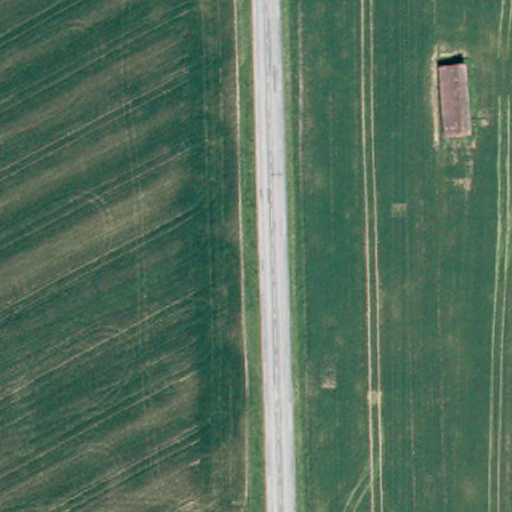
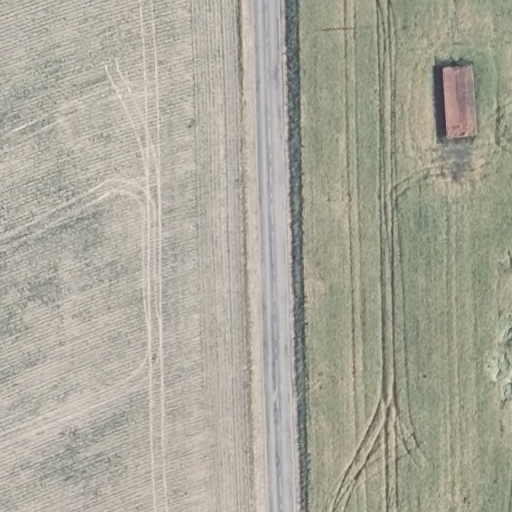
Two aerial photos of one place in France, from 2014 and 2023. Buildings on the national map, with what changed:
unchanged [(445,140),(439,67),(465,65),(471,140),(445,140)]

